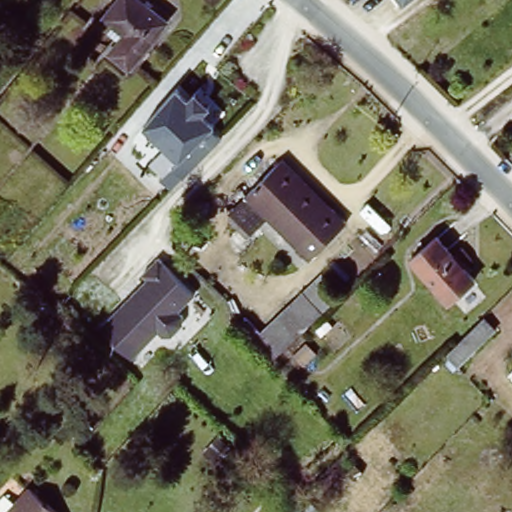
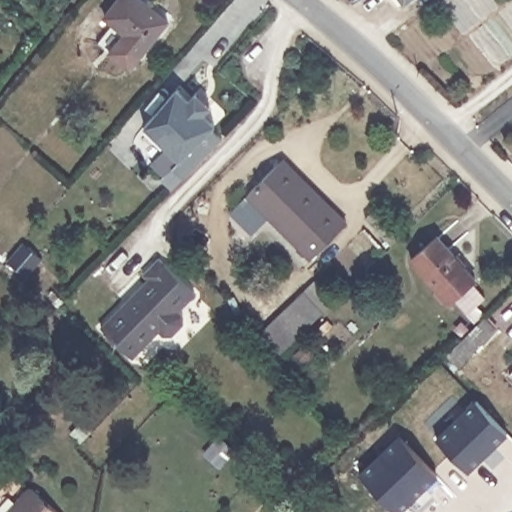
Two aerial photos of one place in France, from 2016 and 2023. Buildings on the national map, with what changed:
unchanged [(173,19),(150,47),(110,14),(122,0),(150,0),(173,19)]
unchanged [(388,0),(402,0),(393,6),(388,0)]
unchanged [(181,103),(188,96),(202,110),(195,117),(207,129),(203,132),(214,142),(175,181),(165,171),(172,164),(135,127),(170,91),(181,103)]
unchanged [(319,186),(347,216),(344,219),(307,255),(258,204),(290,173),(310,195),(316,190),(319,186)]
unchanged [(472,280),(448,303),(410,262),(433,240),(472,280)]
unchanged [(143,287),(138,282),(155,266),(190,302),(173,319),(173,327),(160,340),(152,339),(125,365),(95,334),(143,287)]
unchanged [(255,333),(271,318),(300,290),(319,310),(290,337),(276,351),(255,333)]
unchanged [(478,319),(490,330),(455,361),(449,367),(439,357),(445,351),(478,319)]
new [(470,472),(435,437),(475,400),(508,434),(470,472)]
new [(395,512),(357,472),(398,435),(439,476),(401,512),(395,512)]
unchanged [(60,512),(8,512),(30,486),(60,512)]
unchanged [(325,512),(309,512),(296,499),(303,491),(325,512)]

